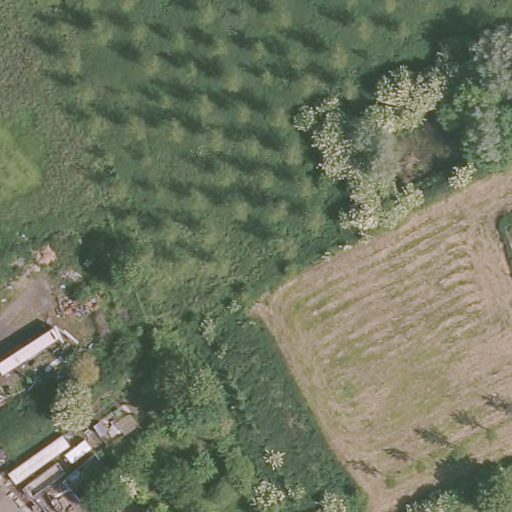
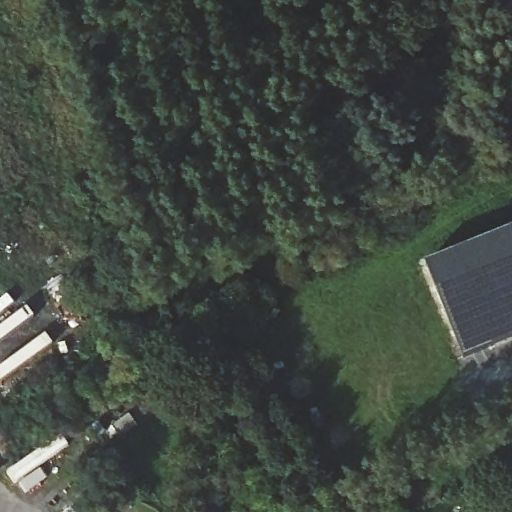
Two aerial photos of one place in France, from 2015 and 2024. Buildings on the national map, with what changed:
new [(464,357),(427,265),(512,230),(512,338),(464,357)]

